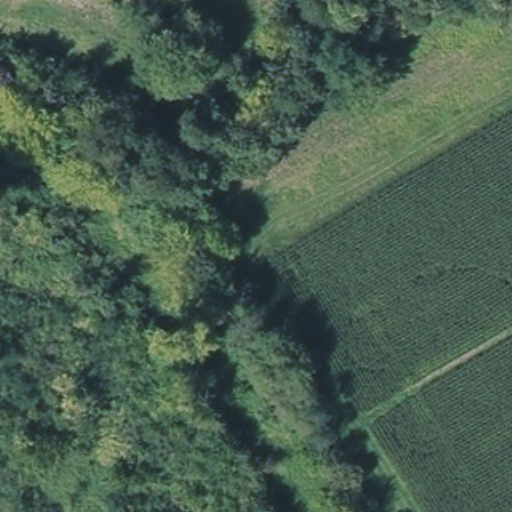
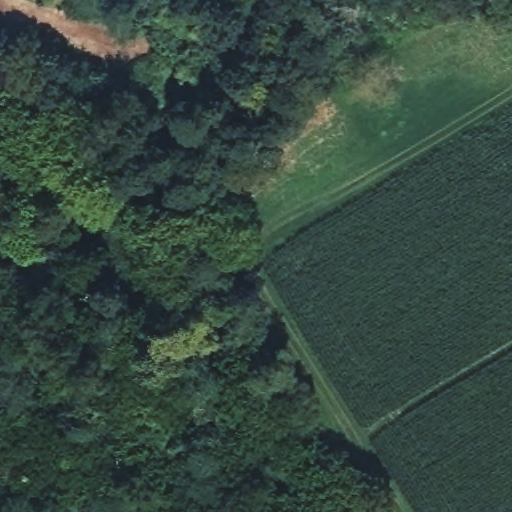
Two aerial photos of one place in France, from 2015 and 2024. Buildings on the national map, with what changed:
[]

